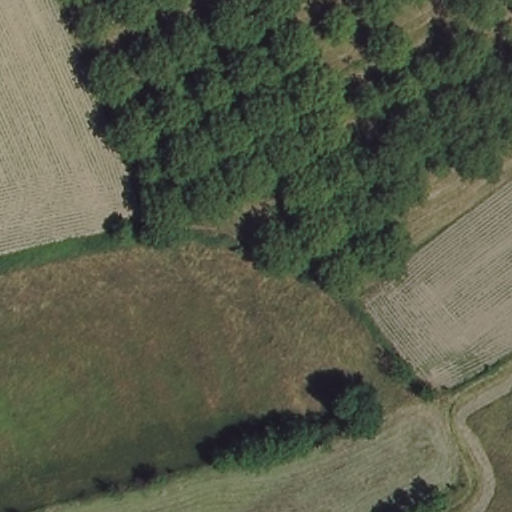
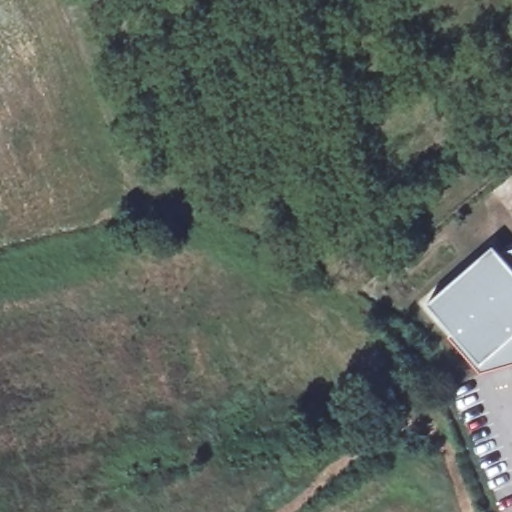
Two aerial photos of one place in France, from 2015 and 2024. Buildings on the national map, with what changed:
new [(504,250),(512,248),(512,338),(485,361),(432,300),(498,243),(504,250)]
new [(485,361),(512,338),(512,363),(485,370),(453,333),(458,330),(485,361)]

